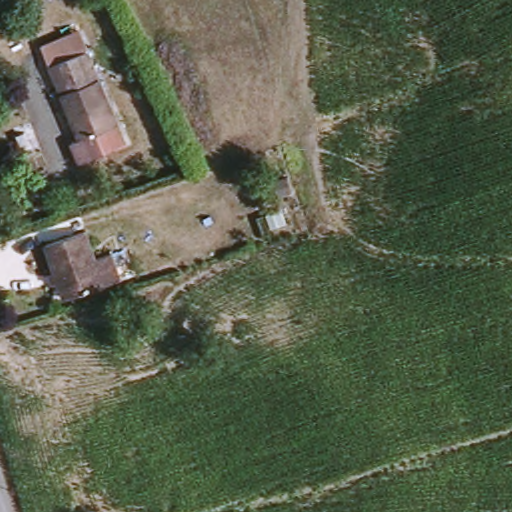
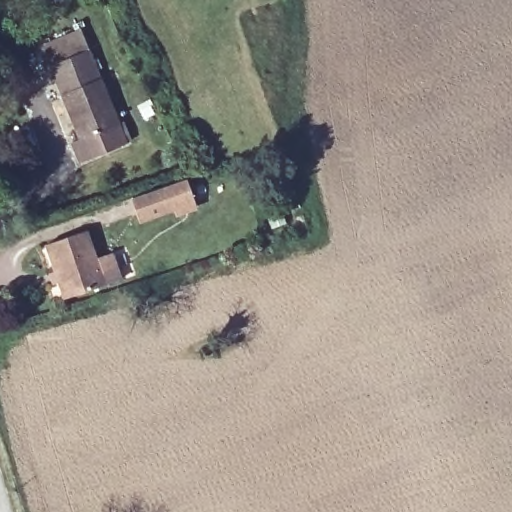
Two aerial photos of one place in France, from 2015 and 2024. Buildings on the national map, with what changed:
unchanged [(79,134),(47,60),(86,43),(127,138),(80,158),(71,138),(79,134)]
new [(131,199),(187,179),(199,210),(177,217),(174,211),(139,223),(131,199)]
unchanged [(46,247),(85,234),(94,261),(110,257),(119,283),(62,300),(57,283),(51,285),(47,274),(54,272),(46,247)]

